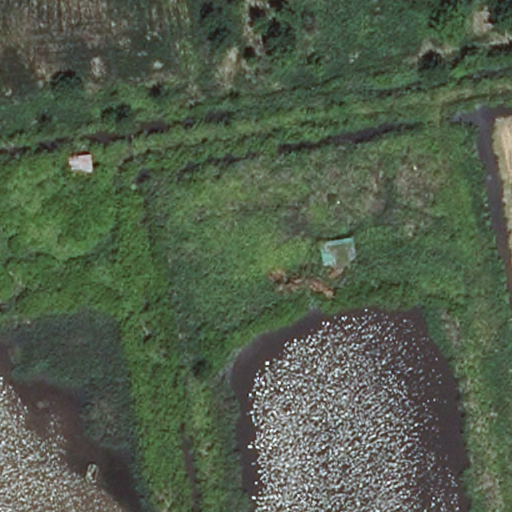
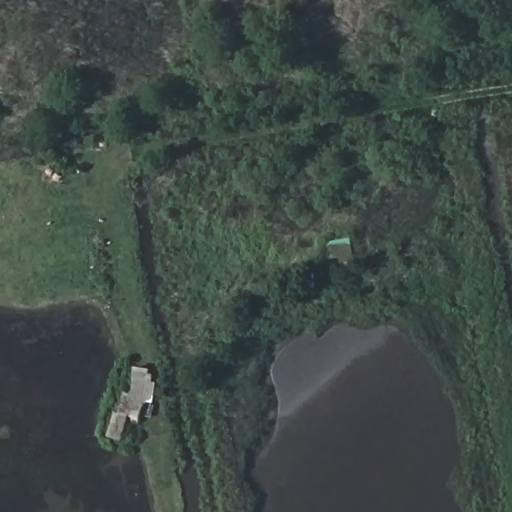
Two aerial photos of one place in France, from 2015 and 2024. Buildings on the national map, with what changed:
unchanged [(94,169),(68,174),(64,157),(89,154),(94,169)]
unchanged [(355,261),(322,270),(316,244),(350,237),(355,261)]

